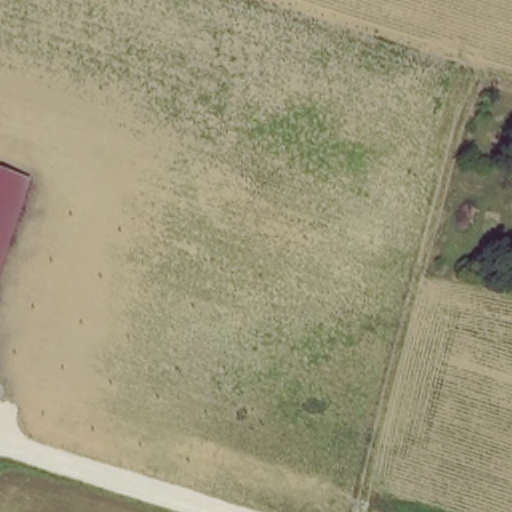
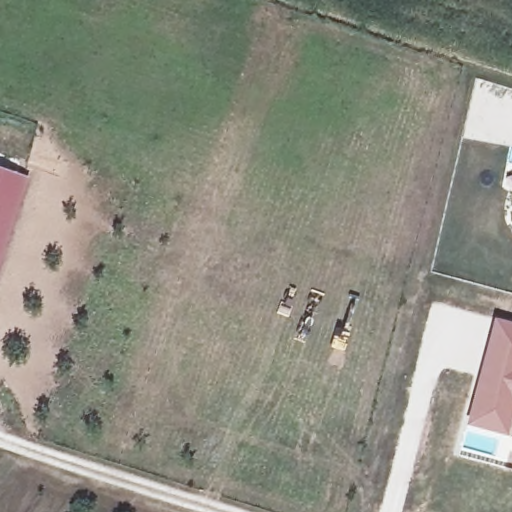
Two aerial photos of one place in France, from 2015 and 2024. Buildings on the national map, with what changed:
unchanged [(27,177),(0,262),(0,168),(27,177)]
new [(512,322),(512,414),(506,435),(464,424),(493,316),(512,322)]

